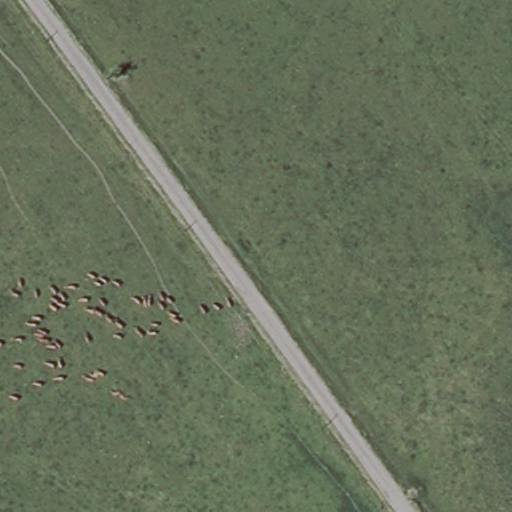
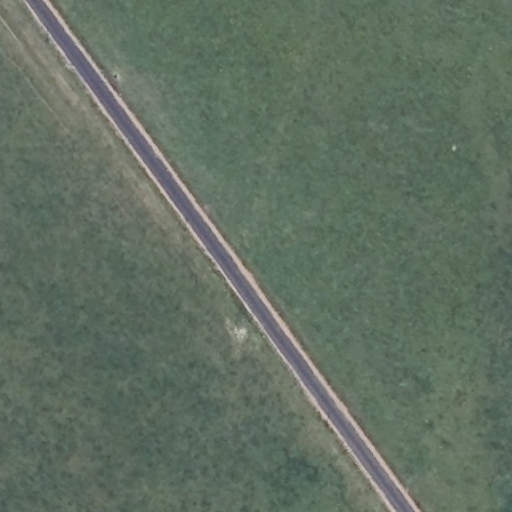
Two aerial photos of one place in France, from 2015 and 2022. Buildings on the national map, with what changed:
[]

